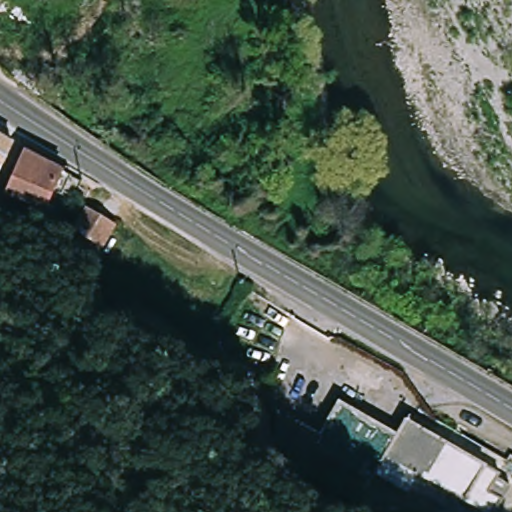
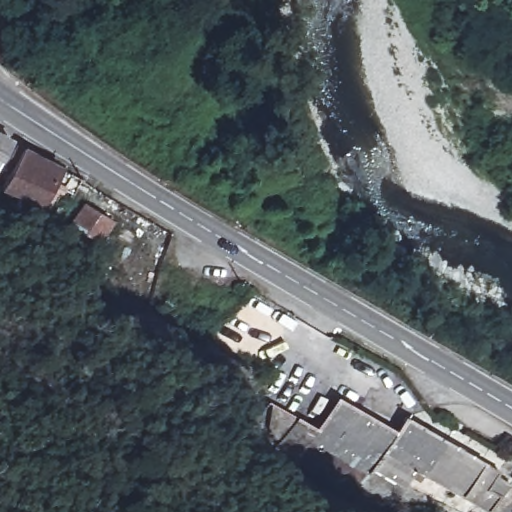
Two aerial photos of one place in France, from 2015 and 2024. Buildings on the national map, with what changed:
unchanged [(8,156),(0,152),(0,129),(18,139),(8,156)]
unchanged [(77,173),(63,196),(55,191),(46,206),(62,214),(58,222),(55,218),(13,196),(17,190),(8,185),(18,164),(14,162),(23,142),(68,168),(77,173)]
unchanged [(86,208),(114,225),(102,247),(73,230),(86,208)]
unchanged [(419,457),(404,449),(400,456),(409,461),(401,476),(335,425),(347,404),(406,433),(415,420),(435,429),(419,457)]
unchanged [(268,447),(287,410),(331,432),(335,425),(401,476),(399,479),(383,471),(381,477),(322,447),(310,469),(268,447)]
unchanged [(401,476),(409,461),(400,456),(404,449),(419,457),(435,429),(505,468),(503,472),(512,478),(512,483),(499,507),(471,491),(468,495),(427,474),(418,489),(401,476)]
unchanged [(368,499),(310,469),(322,447),(381,477),(368,499)]

